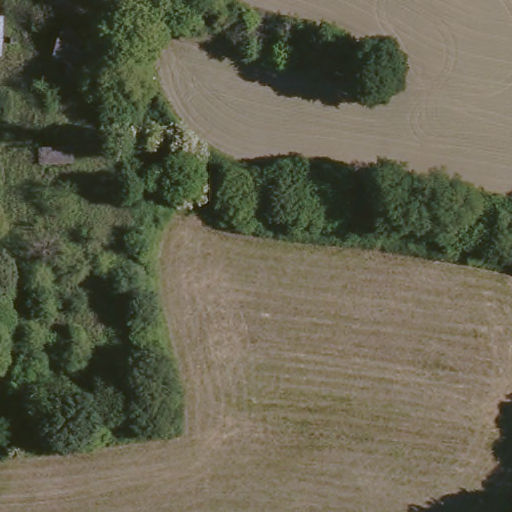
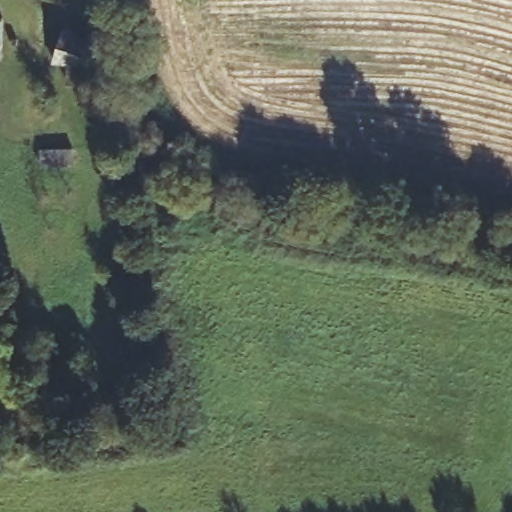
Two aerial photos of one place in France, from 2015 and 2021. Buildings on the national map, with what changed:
unchanged [(0,59),(0,19),(2,19),(3,42),(2,59),(0,59)]
unchanged [(42,53),(59,19),(73,31),(90,51),(76,70),(42,53)]
unchanged [(46,77),(53,62),(80,78),(72,92),(46,77)]
unchanged [(45,148),(42,148),(43,133),(44,133),(75,135),(74,150),(45,148)]

